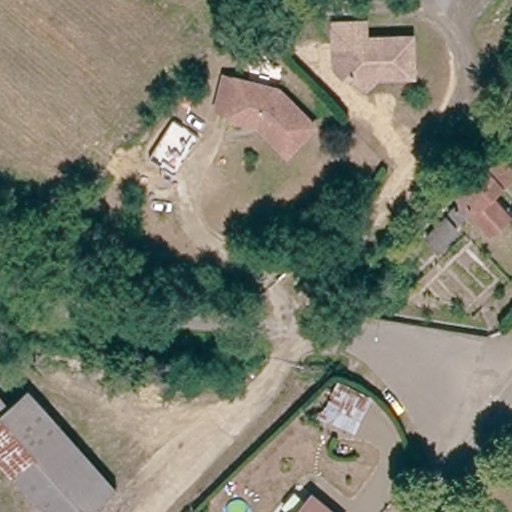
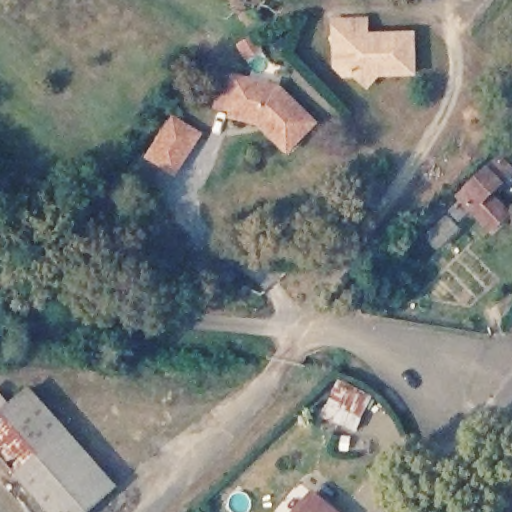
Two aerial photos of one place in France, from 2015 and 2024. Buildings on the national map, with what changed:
unchanged [(332,63),(331,36),(330,19),(362,18),(362,34),(410,34),(411,73),(373,74),(362,84),(352,74),(342,74),(334,66),(332,63)]
unchanged [(230,111),(232,106),(217,101),(225,70),(277,86),(312,123),(285,149),(262,125),(257,119),(230,111)]
new [(144,159),(172,116),(202,134),(175,177),(144,159)]
unchanged [(470,183),(502,154),(512,164),(512,172),(490,191),(507,211),(502,215),(492,225),(460,192),(470,183)]
unchanged [(445,214),(456,227),(436,244),(425,232),(445,214)]
unchanged [(9,347),(2,366),(0,365),(0,343),(9,347)]
unchanged [(357,435),(321,417),(335,386),(372,403),(357,435)]
unchanged [(0,477),(0,415),(17,401),(47,438),(0,477)]
unchanged [(47,438),(100,501),(86,512),(23,512),(0,482),(0,477),(47,438)]
unchanged [(326,512),(294,512),(307,496),(326,512)]

